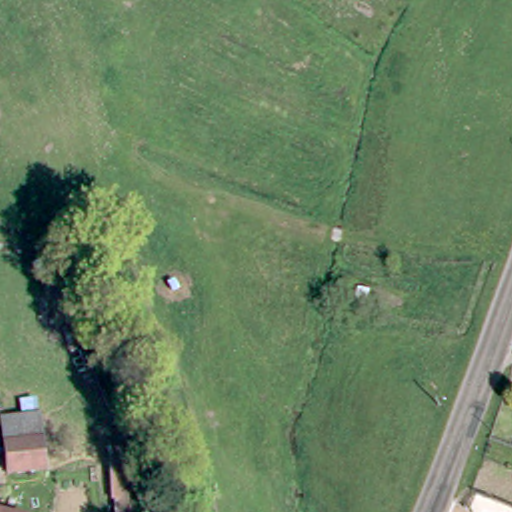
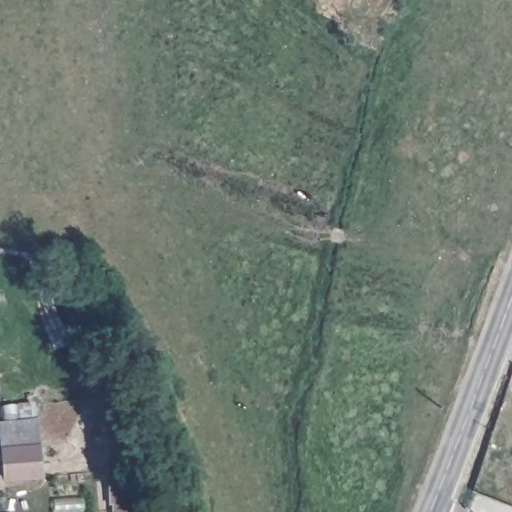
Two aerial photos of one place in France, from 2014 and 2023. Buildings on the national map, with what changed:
unchanged [(37,476),(7,474),(8,447),(6,447),(8,419),(35,421),(36,448),(38,448),(37,476)]
unchanged [(0,509),(12,512),(0,512),(0,509)]

